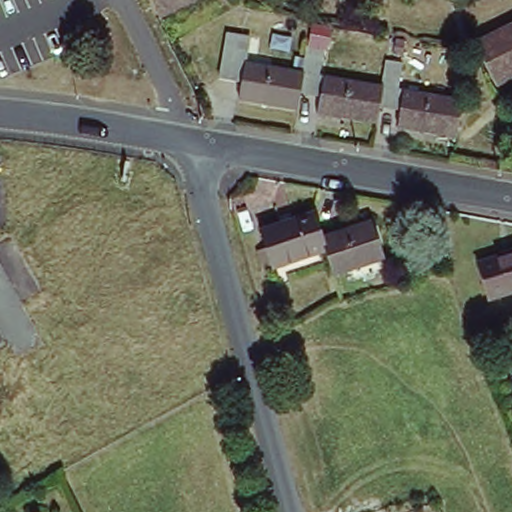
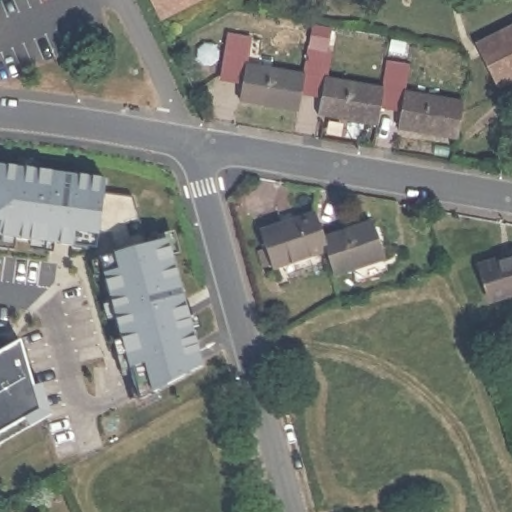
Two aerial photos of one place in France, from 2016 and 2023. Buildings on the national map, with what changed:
unchanged [(149,0),(193,0),(158,18),(149,0)]
unchanged [(501,85),(480,46),(512,30),(512,80),(501,85)]
unchanged [(304,77),(302,93),(299,109),(265,104),(266,101),(241,97),(244,83),(237,81),(222,79),(228,37),(244,39),(239,66),(247,67),(304,77)]
unchanged [(382,90),(378,107),(376,123),(345,118),(345,115),(320,111),(323,97),(316,96),(302,93),(304,77),(309,50),(323,54),(319,79),(326,80),(382,90)]
unchanged [(463,104),(458,137),(426,131),(427,129),(399,124),(401,111),(395,109),(378,107),(382,90),(386,64),(403,66),(398,93),(405,94),(463,104)]
new [(106,234),(96,232),(96,240),(71,237),(70,244),(0,234),(0,163),(103,177),(102,190),(133,197),(145,242),(167,234),(202,366),(138,397),(99,255),(113,251),(106,234)]
unchanged [(268,268),(257,233),(310,216),(317,239),(321,251),(320,252),(268,268)]
unchanged [(366,224),(378,259),(330,277),(321,251),(317,239),(366,224)]
unchanged [(512,253),(512,294),(490,302),(478,264),(512,253)]
new [(41,412),(0,436),(0,354),(22,340),(41,412)]

